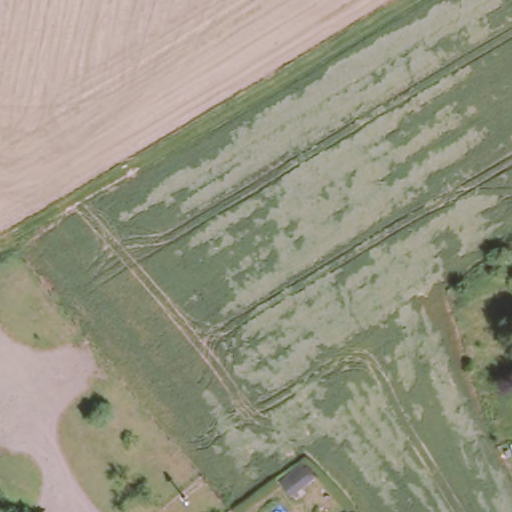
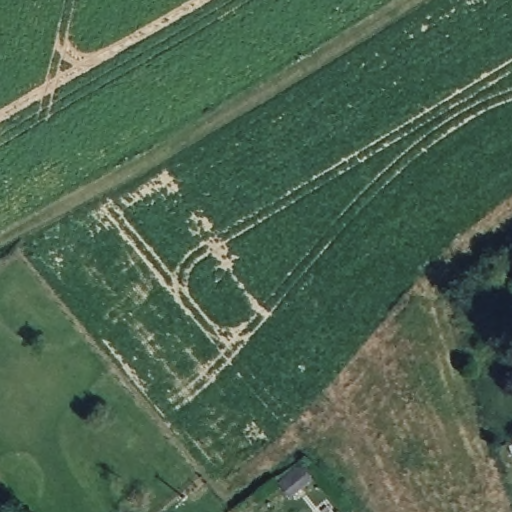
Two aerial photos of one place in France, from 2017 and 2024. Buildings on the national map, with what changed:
unchanged [(303,463),(315,476),(294,495),(283,482),(303,463)]

